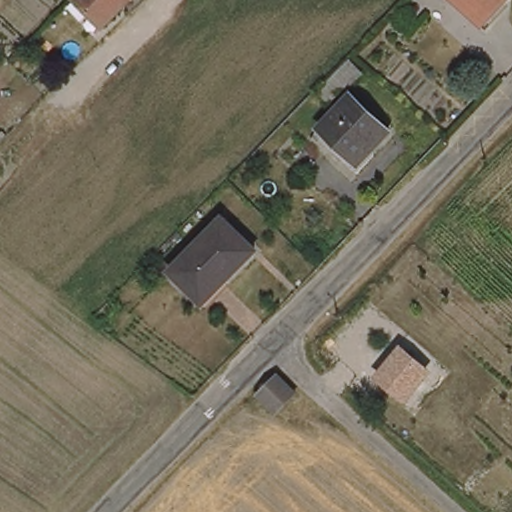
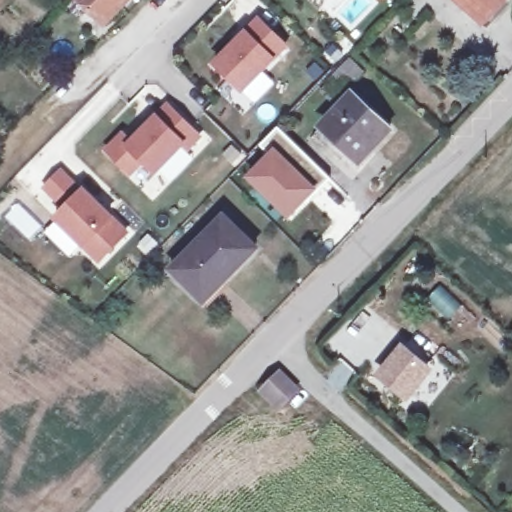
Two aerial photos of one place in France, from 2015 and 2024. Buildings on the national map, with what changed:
unchanged [(85,0),(138,0),(110,26),(85,0)]
unchanged [(476,0),(495,0),(487,9),(476,0)]
new [(259,17),(290,48),(277,61),(243,96),(210,64),(245,30),(259,17)]
unchanged [(369,156),(331,121),(361,91),(399,127),(369,156)]
new [(199,138),(186,150),(182,145),(153,173),(141,161),(128,173),(105,150),(122,134),(130,142),(167,106),(199,138)]
new [(278,126),(330,177),(319,188),(273,144),(266,153),(259,146),(278,126)]
new [(266,153),(273,144),(319,188),(287,219),(245,178),(266,153)]
new [(127,233),(99,260),(57,216),(67,207),(46,186),(62,171),(82,191),(85,189),(127,233)]
unchanged [(210,296),(192,280),(182,288),(168,273),(224,221),(254,253),(210,296)]
unchanged [(384,379),(383,379),(404,354),(405,352),(429,372),(427,374),(407,399),(384,379)]
unchanged [(297,395),(280,412),(262,397),(279,379),(297,395)]

